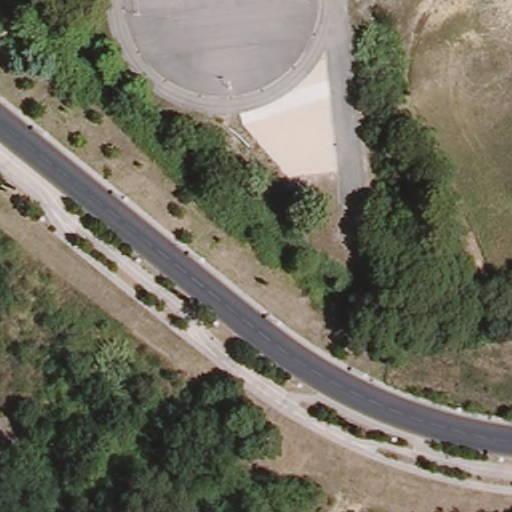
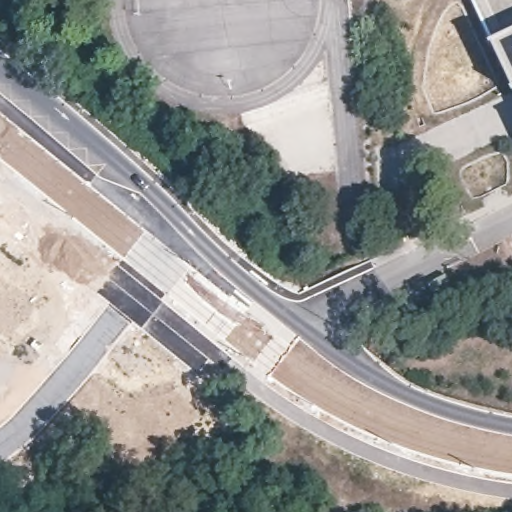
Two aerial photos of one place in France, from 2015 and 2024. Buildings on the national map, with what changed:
new [(474,0),(512,0),(512,84),(493,42),(474,0)]

